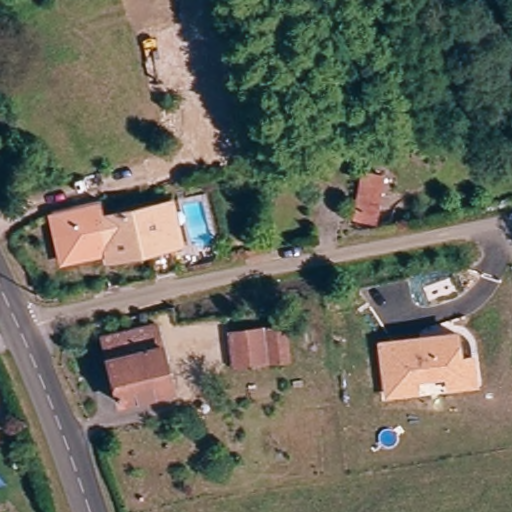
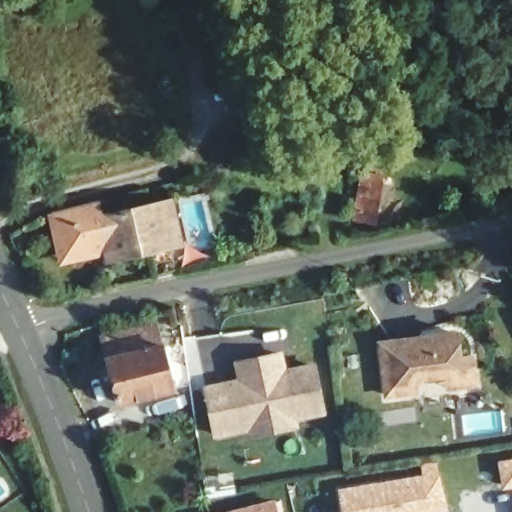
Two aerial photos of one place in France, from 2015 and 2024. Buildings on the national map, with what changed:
unchanged [(362,175),(380,176),(377,214),(360,213),(362,175)]
unchanged [(157,274),(151,245),(109,252),(107,245),(85,249),(69,252),(62,253),(61,244),(57,223),(54,209),(53,204),(98,195),(103,194),(104,197),(106,210),(161,195),(174,192),(185,248),(172,249),(177,269),(157,274)]
demolished [(227,332),(287,323),(292,363),(232,369),(227,332)]
unchanged [(107,341),(154,325),(176,393),(130,408),(107,341)]
unchanged [(457,328),(460,354),(473,353),(478,387),(445,391),(442,378),(416,381),(418,394),(384,398),(376,340),(457,328)]
new [(285,349),(288,368),(317,362),(329,415),(300,421),(301,429),(252,439),(250,432),(214,440),(204,386),(237,378),(235,361),(285,349)]
unchanged [(0,439),(0,435),(2,437),(0,439)]
new [(505,486),(501,465),(512,463),(512,485),(505,486)]
new [(342,512),(338,490),(425,475),(431,512),(342,512)]
new [(227,512),(276,499),(279,512),(227,512)]

